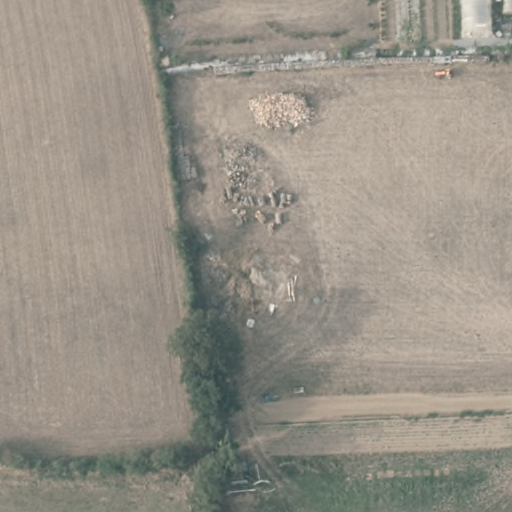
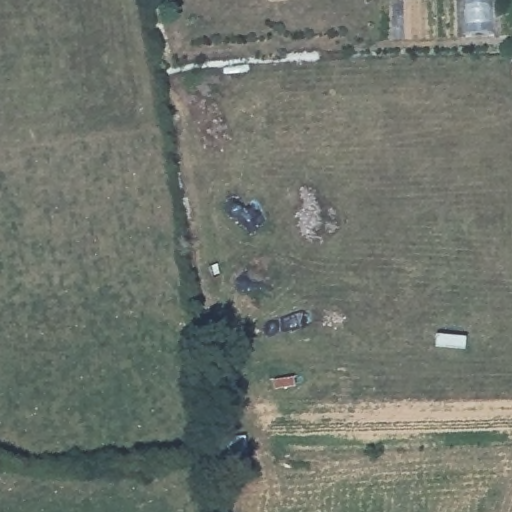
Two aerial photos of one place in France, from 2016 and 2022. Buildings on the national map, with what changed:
[]

